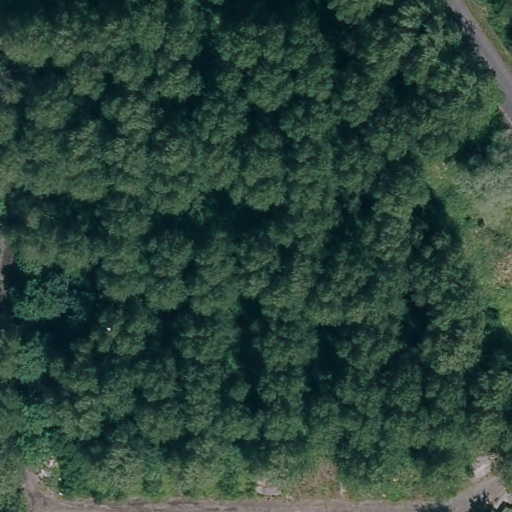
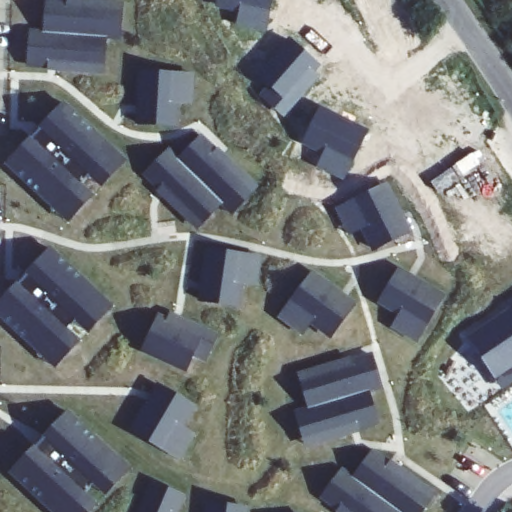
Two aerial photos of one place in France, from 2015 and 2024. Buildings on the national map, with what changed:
new [(236,26),(239,12),(215,7),(217,0),(272,0),(266,32),(236,26)]
new [(110,8),(108,41),(93,40),(91,74),(31,69),(33,35),(48,37),(50,3),(110,8)]
new [(110,7),(125,8),(123,44),(108,42),(106,76),(91,75),(93,40),(108,41),(110,8),(110,7)]
new [(321,65),(316,71),(321,76),(284,118),(258,95),(268,84),(254,74),(289,36),(321,65)]
new [(141,128),(144,81),(143,81),(143,76),(198,79),(196,108),(181,107),(182,83),(179,130),(141,128)]
new [(344,180),(316,167),(322,155),(301,145),(319,106),(369,130),(344,180)]
new [(54,162),(63,152),(43,133),(67,108),(116,155),(59,215),(10,168),(34,143),(54,162)]
new [(171,154),(181,164),(204,140),(247,183),(223,207),(213,197),(189,220),(147,178),(171,154)]
new [(128,165),(104,191),(93,180),(116,155),(118,154),(128,165)]
new [(213,197),(223,207),(248,182),(258,193),(233,218),(223,208),(199,232),(189,221),(189,220),(213,197)]
new [(354,212),(364,233),(350,240),(338,214),(389,189),(391,194),(354,212)]
new [(94,200),(70,226),(59,216),(83,190),(94,200)]
new [(391,194),(412,237),(375,255),(354,212),(391,194)]
new [(19,287),(39,307),(48,297),(28,278),(53,253),(102,300),(45,360),(0,317),(0,308),(19,287)]
new [(208,258),(208,253),(263,262),(258,290),(243,287),(247,264),(209,259),(208,258)]
new [(247,264),(239,311),(202,305),(209,258),(247,264)]
new [(331,342),(293,313),(311,327),(302,339),(279,322),(314,276),(318,279),(317,281),(355,309),(331,342)]
new [(399,277),(439,301),(420,333),(380,309),(399,277)]
new [(103,299),(114,310),(89,336),(78,325),(103,299)]
new [(420,333),(440,300),(444,302),(417,349),(393,334),(400,321),(420,333)]
new [(466,338),(512,307),(512,385),(502,392),(466,338)]
new [(198,337),(163,320),(166,313),(216,337),(203,364),(188,357),(198,337)]
new [(164,320),(198,337),(182,370),(148,353),(164,320)]
new [(69,335),(80,345),(55,371),(44,361),(45,360),(69,335)]
new [(373,361),(382,393),(369,397),(378,429),(320,446),(311,414),(324,410),(315,377),(373,361)]
new [(324,410),(311,414),(320,447),(306,451),(296,417),(309,413),(300,380),(315,376),(315,377),(324,410)]
new [(168,451),(133,431),(158,389),(193,410),(168,451)]
new [(35,450),(55,469),(64,460),(44,440),(68,415),(118,462),(71,512),(50,512),(11,475),(35,450)]
new [(179,463),(130,434),(133,430),(168,451),(181,431),(193,439),(179,463)]
new [(420,492),(405,512),(391,512),(388,510),(387,512),(334,512),(320,501),(341,474),(352,483),(371,456),(420,492)]
new [(123,480),(105,499),(93,488),(111,469),(123,480)]
new [(153,485),(183,498),(178,512),(141,512),(153,485)]
new [(421,491),(433,500),(424,512),(405,512),(420,492),(421,491)]
new [(96,508),(92,512),(71,512),(85,497),(96,508)]
new [(247,512),(209,512),(208,507),(246,502),(247,512)]
new [(388,510),(391,512),(387,512),(388,510)]
new [(253,511),(254,512),(247,512),(253,511)]

